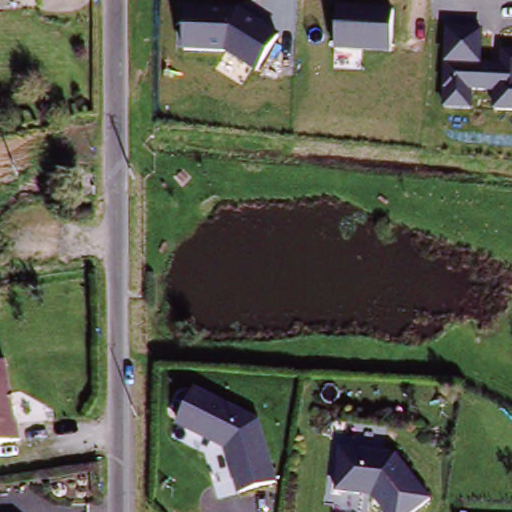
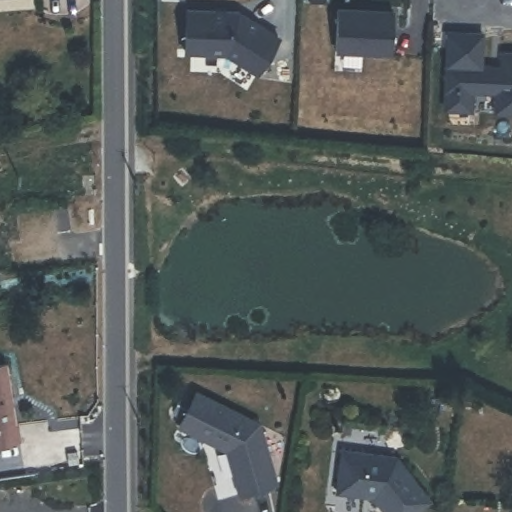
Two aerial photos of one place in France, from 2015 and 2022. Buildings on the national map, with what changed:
unchanged [(391,51),(336,51),(337,8),(393,9),(391,51)]
unchanged [(257,75),(223,55),(183,53),(184,9),(239,12),(280,38),(257,75)]
unchanged [(500,70),(500,54),(512,55),(512,113),(493,112),(493,94),(472,92),(471,111),(445,110),(448,31),(482,31),(481,68),(500,70)]
unchanged [(9,360),(18,419),(23,423),(26,439),(0,443),(0,362),(9,360)]
unchanged [(197,392),(260,423),(278,484),(242,494),(228,450),(180,426),(197,392)]
unchanged [(394,452),(434,493),(416,512),(400,512),(395,505),(336,494),(341,449),(394,452)]

